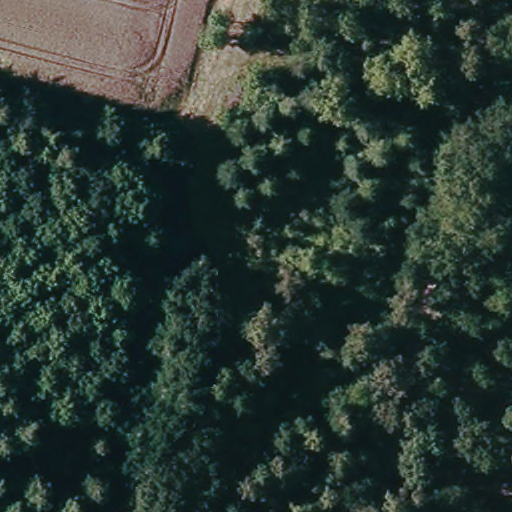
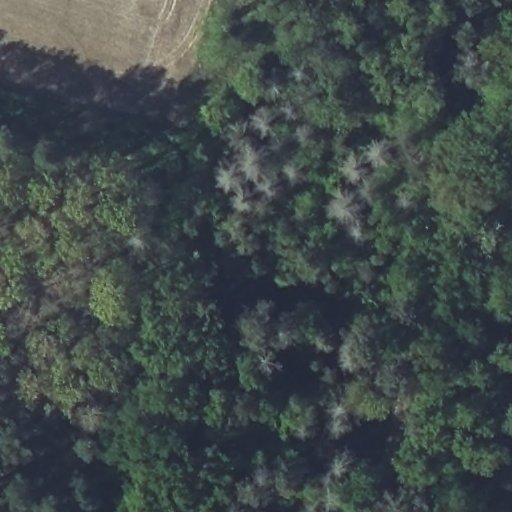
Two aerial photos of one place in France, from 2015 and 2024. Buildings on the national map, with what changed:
[]

